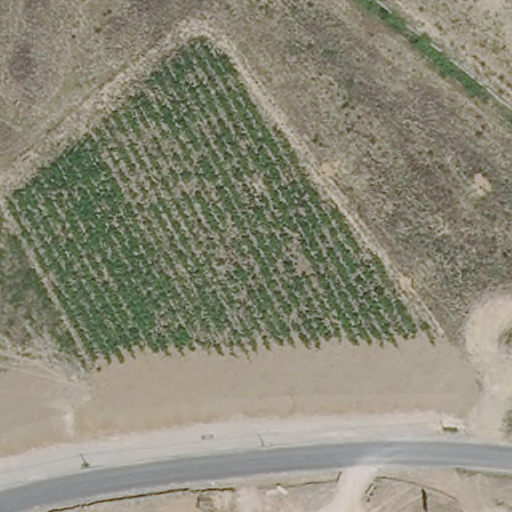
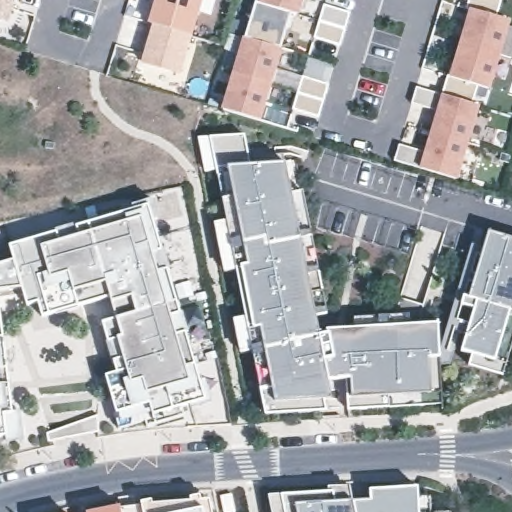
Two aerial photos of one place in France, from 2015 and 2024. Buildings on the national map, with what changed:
new [(13,0),(7,21),(0,19),(0,0),(13,0)]
new [(201,0),(191,36),(150,24),(157,0),(201,0)]
new [(301,0),(297,15),(292,13),(262,4),(263,0),(301,0)]
new [(466,9),(469,0),(501,0),(497,17),(509,21),(499,55),(461,44),(471,11),(466,9)]
new [(256,2),(262,4),(292,13),(281,49),(245,38),(256,2)]
new [(324,5),(350,12),(345,29),(340,45),(314,38),(319,21),(324,5)]
new [(143,46),(146,39),(150,24),(191,36),(179,74),(143,63),(148,48),(143,46)]
new [(245,38),(281,49),(270,85),(234,74),(245,38)]
new [(499,55),(489,88),(478,84),(472,104),(443,95),(451,61),(457,63),(461,44),(499,55)]
new [(234,74),(270,85),(259,121),(224,110),(234,74)]
new [(303,76),(329,84),(324,101),(319,117),(293,110),(298,93),(303,76)]
new [(417,87),(478,106),(467,142),(433,132),(439,111),(412,104),(417,87)]
new [(400,145),(426,153),(433,132),(467,142),(456,180),(395,161),(400,145)]
new [(448,353),(457,361),(455,367),(439,363),(441,403),(390,406),(349,409),(348,397),(353,396),(352,379),(327,380),(332,399),(322,399),(326,411),(267,414),(254,350),(240,353),(234,320),(246,318),(237,269),(224,273),(215,224),(228,221),(224,197),(218,168),(204,172),(198,139),(245,135),(251,166),(285,164),(292,195),(303,192),(327,312),(315,314),(320,337),(330,334),(330,329),(356,328),(355,318),(409,315),(409,326),(439,323),(440,351),(448,353)]
new [(13,261),(10,246),(58,232),(57,229),(76,224),(77,227),(134,209),(133,204),(152,199),(157,220),(153,220),(180,313),(183,312),(189,332),(186,333),(200,382),(205,381),(211,403),(192,408),(191,404),(180,408),(183,415),(156,422),(149,425),(147,420),(120,428),(116,412),(106,376),(118,373),(103,323),(118,319),(111,296),(43,315),(39,301),(28,303),(26,295),(0,298),(0,265),(13,261)]
new [(467,334),(469,325),(473,310),(462,307),(465,298),(468,299),(472,284),(483,248),(488,231),(512,238),(512,344),(506,366),(503,376),(468,366),(471,356),(461,353),(467,334)]
new [(472,244),(483,248),(472,284),(469,283),(465,298),(462,307),(458,322),(469,325),(467,334),(455,330),(448,353),(440,351),(472,244)]
new [(13,414),(20,413),(23,440),(7,441),(7,435),(0,436),(0,321),(13,414)]
new [(50,436),(98,415),(101,431),(50,440),(50,436)]
new [(271,496),(283,495),(352,491),(354,501),(372,500),(371,490),(419,488),(419,498),(432,498),(432,512),(274,512),(271,496)]
new [(141,506),(141,503),(152,501),(153,504),(190,501),(189,498),(200,495),(201,500),(210,500),(212,512),(123,512),(122,508),(141,506)]
new [(122,508),(123,512),(102,512),(122,508)]

